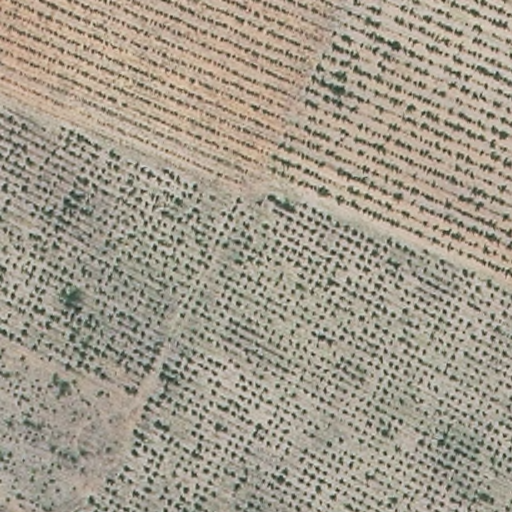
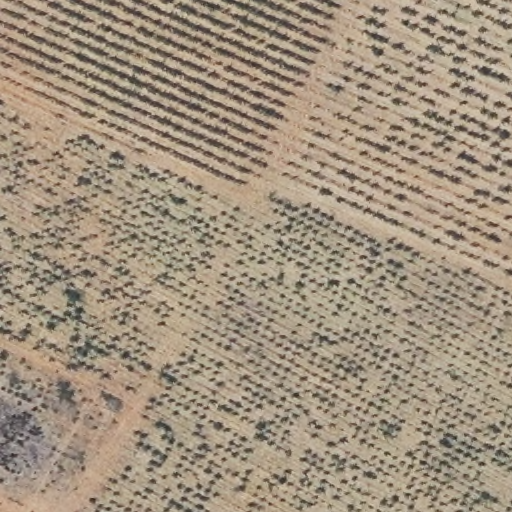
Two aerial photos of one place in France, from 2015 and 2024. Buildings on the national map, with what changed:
[]

